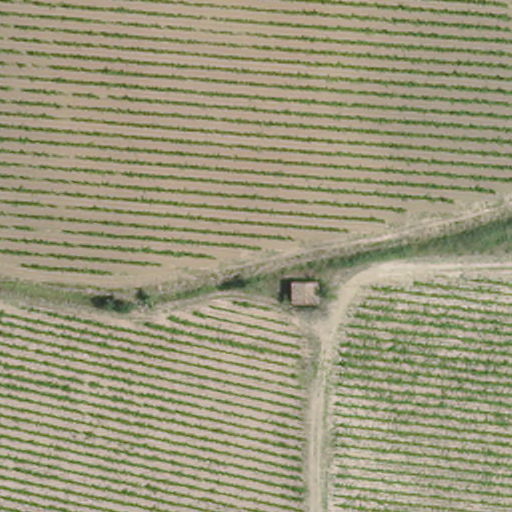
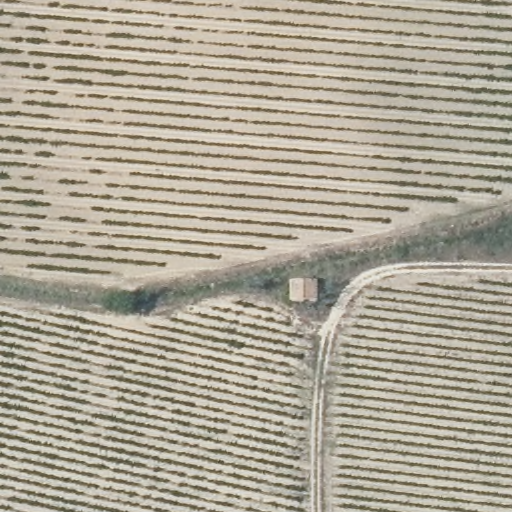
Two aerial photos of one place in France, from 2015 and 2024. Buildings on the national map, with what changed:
unchanged [(292,281),(318,279),(320,301),(293,303),(292,281)]

